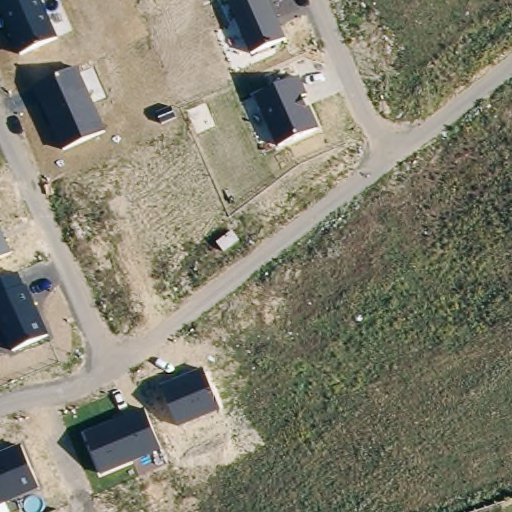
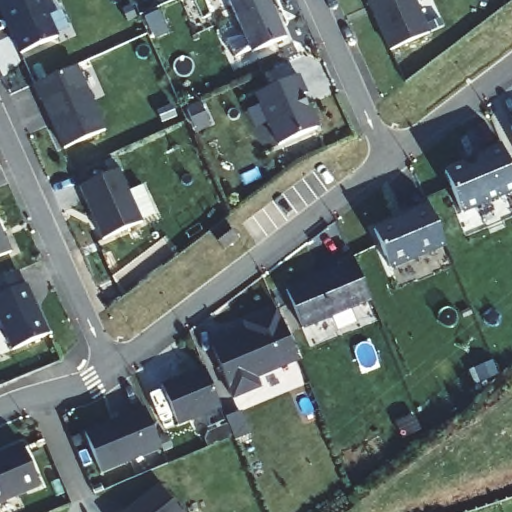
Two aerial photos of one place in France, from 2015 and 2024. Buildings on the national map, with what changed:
unchanged [(8,0),(42,0),(58,37),(18,54),(0,14),(0,4),(8,0)]
unchanged [(251,54),(229,4),(228,0),(268,0),(284,39),(251,54)]
new [(388,51),(366,0),(413,0),(428,33),(388,51)]
unchanged [(105,130),(63,149),(35,85),(78,66),(105,130)]
unchanged [(308,94),(304,94),(319,128),(276,146),(254,94),(299,76),(308,94)]
new [(512,134),(509,128),(512,126),(512,134)]
new [(483,151),(499,145),(512,175),(512,191),(460,213),(443,172),(484,154),(483,151)]
new [(117,169),(141,222),(101,240),(78,187),(117,169)]
new [(396,221),(397,224),(407,219),(405,216),(428,207),(444,245),(389,269),(373,232),(396,221)]
unchanged [(10,253),(0,257),(0,227),(10,253)]
new [(370,303),(303,329),(286,289),(339,267),(338,262),(351,255),(370,303)]
unchanged [(24,285),(27,284),(49,334),(11,350),(0,325),(0,280),(18,272),(24,285)]
new [(298,361),(254,378),(258,388),(233,397),(211,348),(246,333),(243,324),(278,309),(298,361)]
unchanged [(220,410),(178,427),(161,386),(203,368),(220,410)]
unchanged [(160,449),(100,474),(84,434),(144,409),(160,449)]
unchanged [(39,489),(0,505),(0,454),(21,445),(39,489)]
new [(158,484),(180,512),(124,512),(158,484)]

